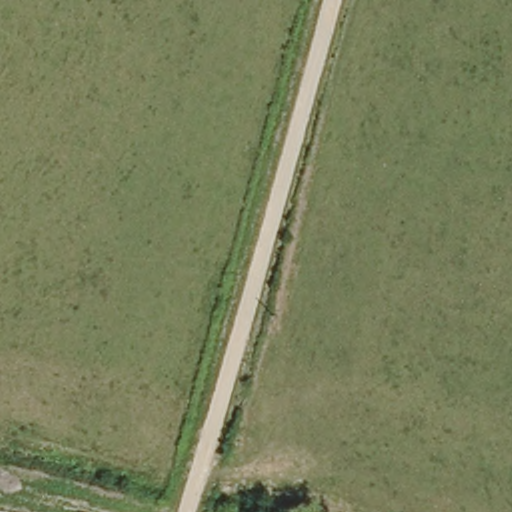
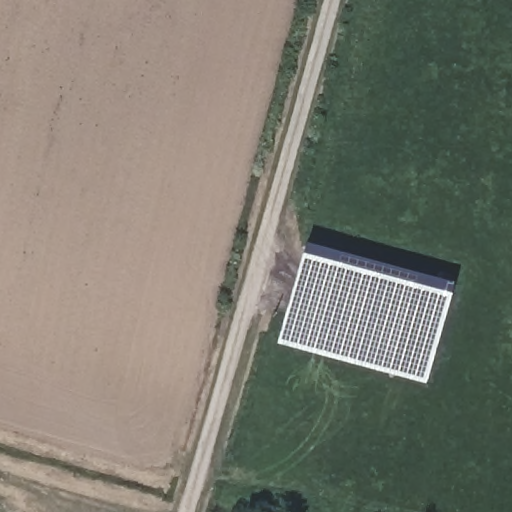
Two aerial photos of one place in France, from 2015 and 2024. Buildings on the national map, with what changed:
new [(451,287),(425,385),(277,345),(303,246),(451,287)]

